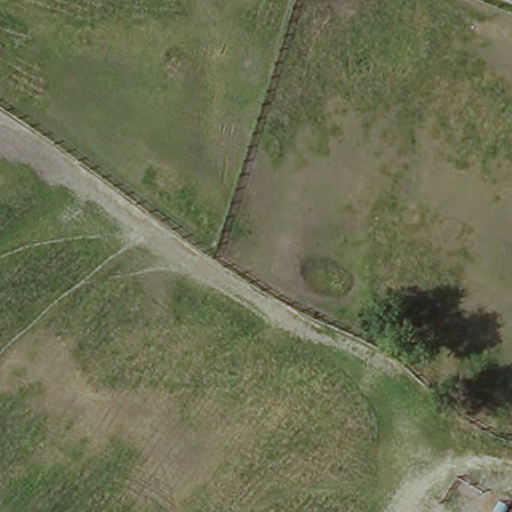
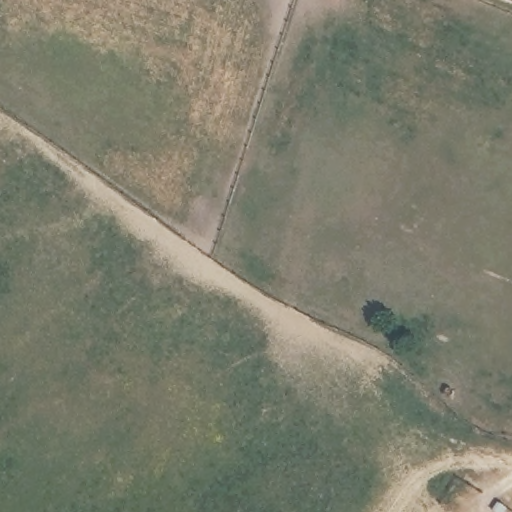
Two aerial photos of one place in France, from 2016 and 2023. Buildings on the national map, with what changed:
[]

